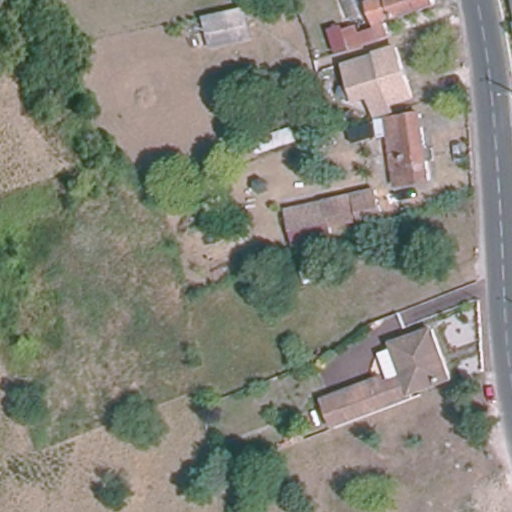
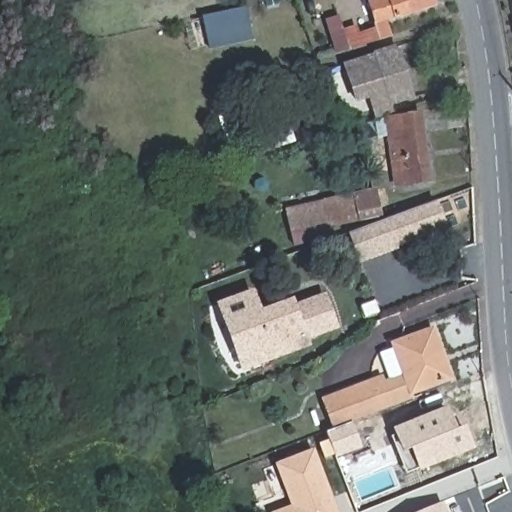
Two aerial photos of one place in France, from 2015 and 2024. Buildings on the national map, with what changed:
unchanged [(379,0),(435,0),(436,2),(386,19),(379,0)]
unchanged [(253,5),(257,25),(217,34),(219,41),(210,43),(212,50),(206,51),(200,24),(213,21),(211,15),(253,5)]
unchanged [(352,53),(344,29),(360,24),(362,33),(376,29),(375,26),(390,21),(395,36),(352,53)]
unchanged [(410,97),(394,102),(390,89),(376,93),(365,56),(394,46),(410,97)]
unchanged [(426,147),(430,147),(432,159),(425,160),(428,179),(393,184),(391,169),(382,170),(377,136),(361,140),(313,151),(309,140),(339,130),(358,123),(375,118),(421,111),(426,147)]
unchanged [(321,120),(325,131),(255,155),(251,144),(321,120)]
unchanged [(323,223),(287,228),(284,206),(362,190),(374,188),(378,215),(366,217),(335,223),(323,226),(323,223)]
new [(358,261),(347,232),(438,199),(448,228),(358,261)]
new [(305,337),(308,345),(242,368),(218,303),(252,292),(260,311),(292,300),(295,306),(324,296),(335,326),(305,337)]
unchanged [(330,427),(319,397),(376,376),(377,380),(399,371),(388,342),(426,328),(444,377),(405,392),(408,398),(352,419),(330,427)]
new [(465,425),(474,448),(417,471),(409,449),(401,452),(391,427),(448,404),(457,428),(465,425)]
new [(314,446),(339,512),(273,512),(291,505),(275,462),(314,446)]
new [(449,512),(419,512),(445,501),(449,512)]

